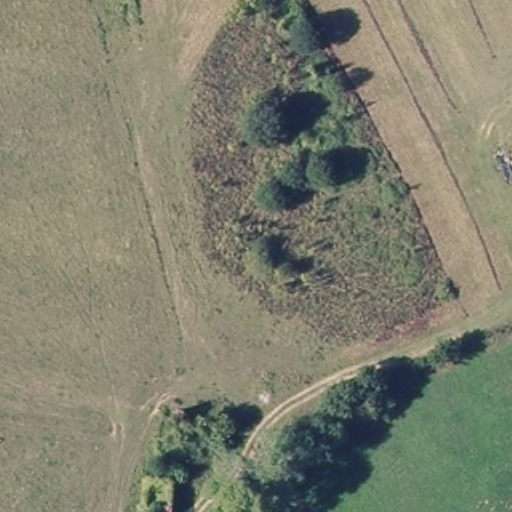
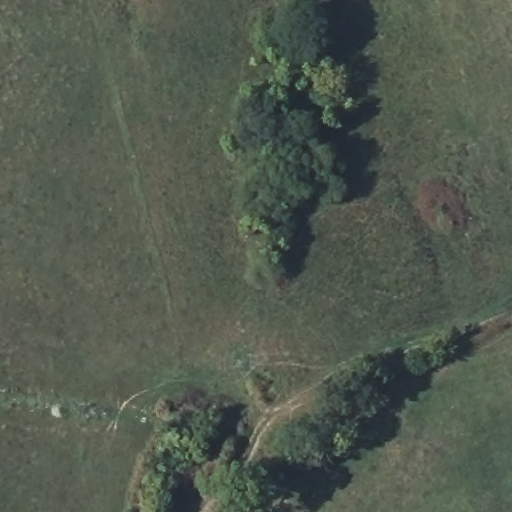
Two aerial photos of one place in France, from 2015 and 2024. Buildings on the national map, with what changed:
unchanged [(176,478),(173,512),(146,512),(150,476),(176,478)]

